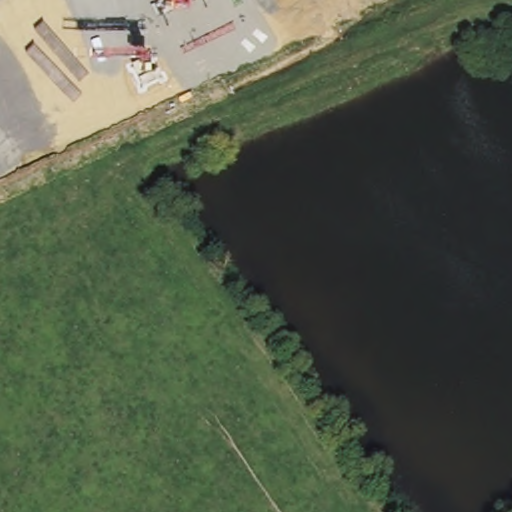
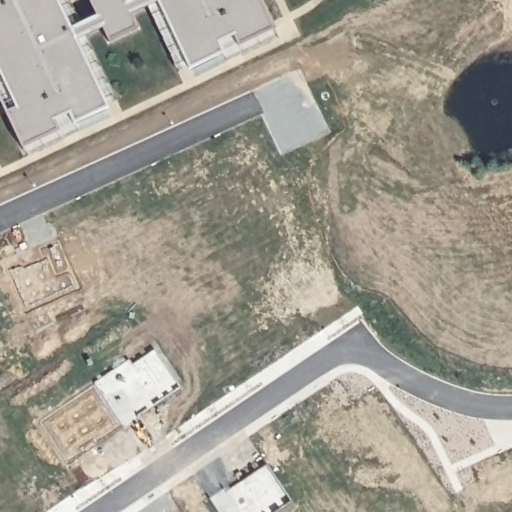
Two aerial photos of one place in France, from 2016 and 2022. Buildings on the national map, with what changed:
new [(190,65),(158,1),(130,13),(137,27),(108,40),(102,27),(78,39),(107,105),(75,121),(69,109),(51,119),(56,129),(23,145),(0,98),(0,0),(59,0),(72,26),(97,14),(90,0),(126,0),(126,1),(130,0),(260,0),(273,26),(190,65)]
new [(87,34),(116,100),(107,105),(78,39),(87,34)]

